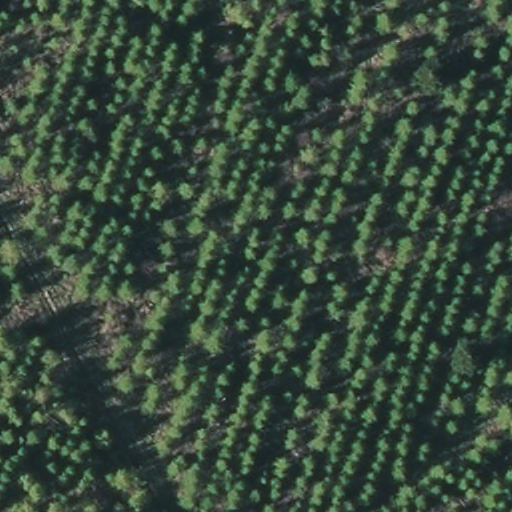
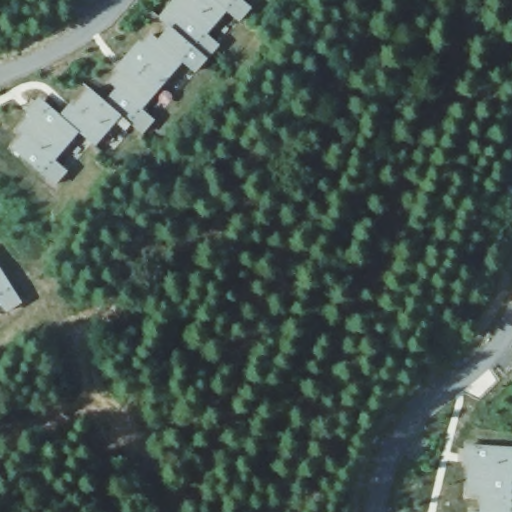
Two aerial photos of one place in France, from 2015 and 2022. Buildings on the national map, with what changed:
new [(253,9),(241,24),(226,12),(208,34),(221,46),(197,74),(183,64),(142,110),(155,122),(142,136),(131,126),(127,131),(117,123),(95,147),(79,134),(57,160),(69,173),(56,187),(12,149),(22,135),(16,130),(29,115),(25,112),(39,97),(60,114),(71,103),(74,106),(90,88),(105,101),(115,89),(109,82),(118,72),(114,69),(139,40),(143,44),(152,34),(158,38),(169,26),(158,17),(172,0),(243,0),(253,9)]
new [(22,305),(7,314),(0,304),(0,269),(22,305)]
new [(470,512),(471,512),(479,512),(479,495),(466,494),(467,466),(463,465),(464,444),(512,447),(512,512),(470,512)]

